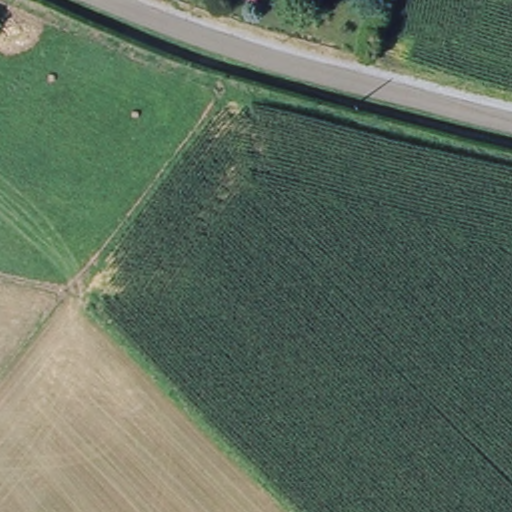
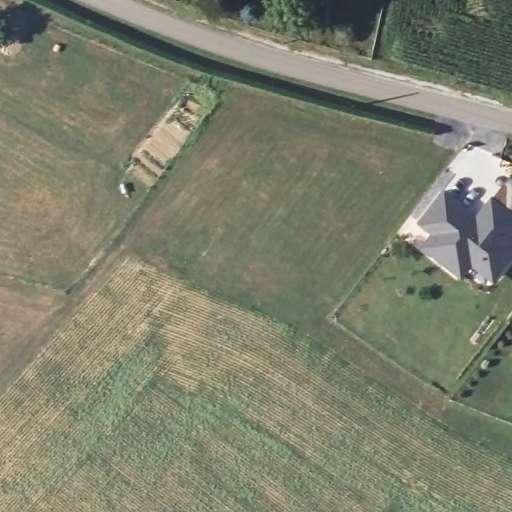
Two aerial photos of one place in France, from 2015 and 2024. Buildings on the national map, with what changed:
new [(444,190),(463,205),(428,250),(425,247),(436,234),(420,221),(444,190)]
new [(428,250),(463,205),(469,210),(468,212),(478,220),(494,198),(512,212),(512,241),(511,243),(512,243),(512,259),(499,276),(486,265),(482,270),(475,264),(464,277),(445,262),(428,250)]

